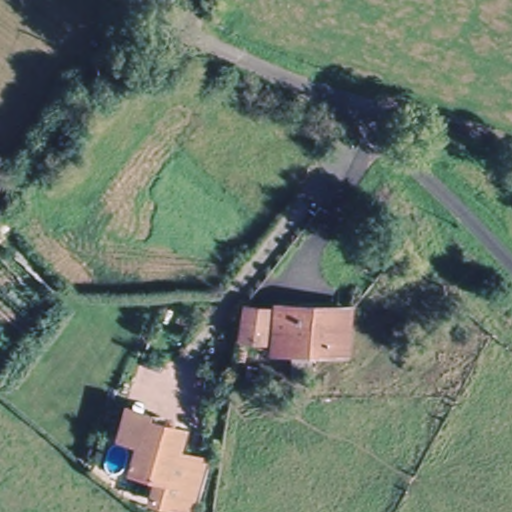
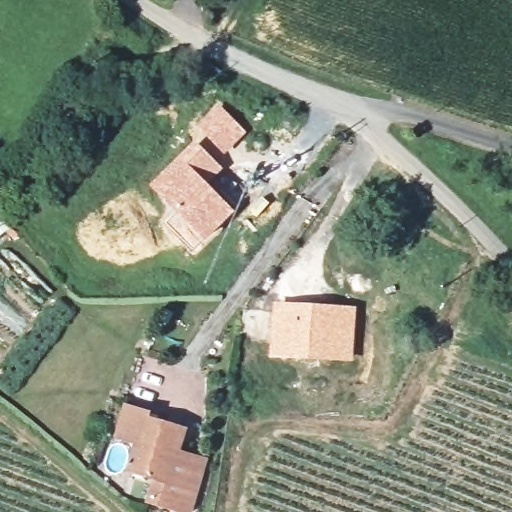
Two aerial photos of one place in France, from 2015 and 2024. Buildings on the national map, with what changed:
new [(218,101),(247,131),(223,155),(195,123),(218,101)]
new [(195,139),(224,167),(209,183),(235,211),(203,241),(148,184),(195,139)]
unchanged [(265,303),(262,337),(238,335),(241,302),(265,303)]
unchanged [(328,306),(356,306),(356,357),(326,357),(274,356),(275,305),(328,306)]
unchanged [(177,450),(171,479),(159,476),(133,470),(139,443),(118,438),(125,407),(146,413),(144,423),(182,432),(177,450)]
unchanged [(207,457),(195,508),(154,498),(159,476),(171,479),(177,450),(207,457)]

